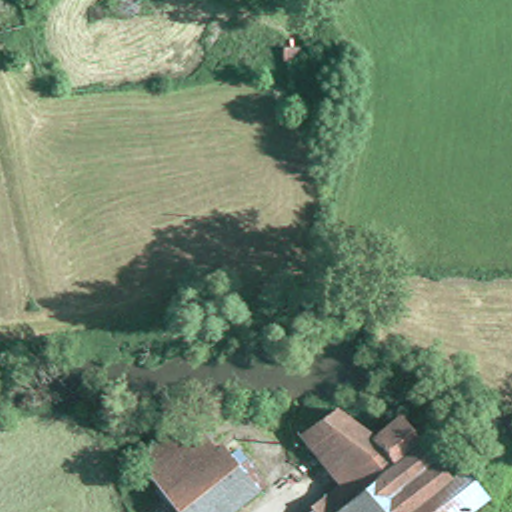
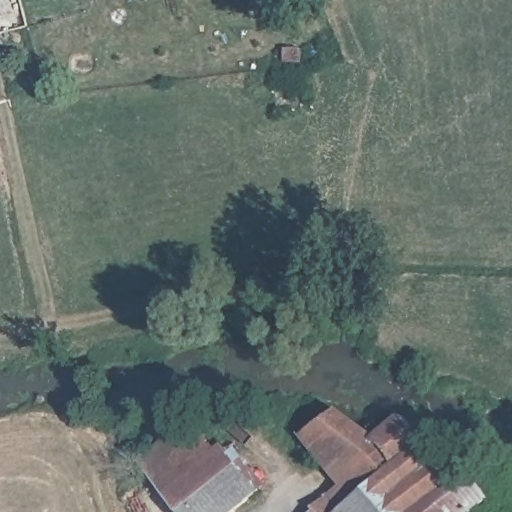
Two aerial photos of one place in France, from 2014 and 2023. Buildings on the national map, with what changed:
unchanged [(278,113),(275,91),(311,86),(315,108),(278,113)]
unchanged [(338,491),(300,433),(316,421),(333,410),(358,444),(400,416),(442,466),(455,455),(463,464),(485,497),(463,512),(313,512),(334,494),(338,491)]
unchanged [(214,447),(221,454),(250,492),(226,512),(169,512),(142,478),(132,465),(163,438),(175,452),(193,436),(207,452),(214,447)]

